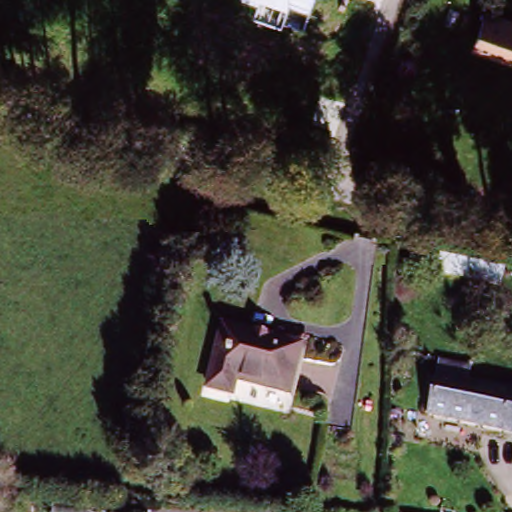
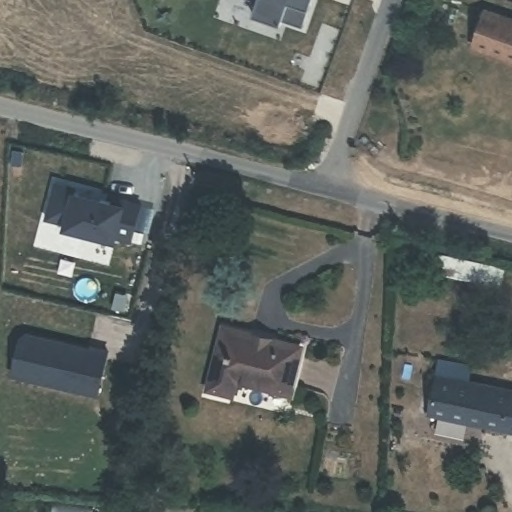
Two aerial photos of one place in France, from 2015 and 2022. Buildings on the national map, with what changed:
unchanged [(281,20),(280,23),(254,15),(256,1),(251,0),(311,0),(303,26),(281,20)]
unchanged [(490,15),(512,24),(512,65),(476,51),(490,15)]
new [(59,184),(79,189),(78,194),(126,207),(127,202),(144,206),(134,242),(119,238),(118,243),(68,229),(69,225),(50,219),(59,184)]
unchanged [(494,263),(489,281),(453,270),(457,253),(494,263)]
unchanged [(301,340),(292,384),(238,372),(234,389),(206,383),(219,322),(301,340)]
new [(24,333),(41,337),(50,339),(91,348),(91,346),(108,350),(98,395),(10,375),(19,336),(24,333)]
unchanged [(512,387),(512,431),(425,414),(431,373),(512,387)]

